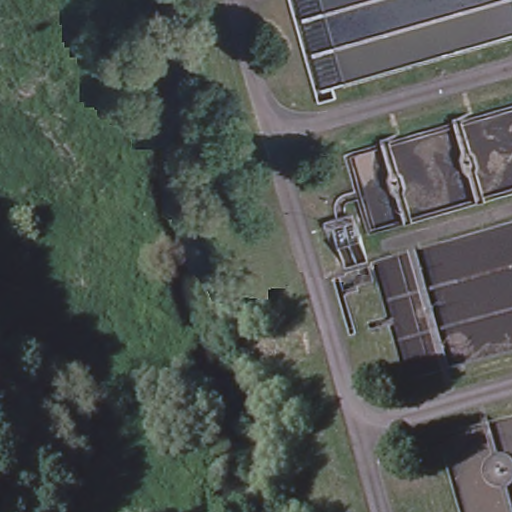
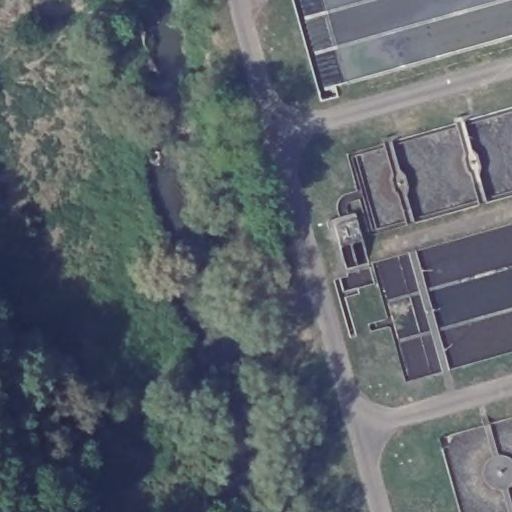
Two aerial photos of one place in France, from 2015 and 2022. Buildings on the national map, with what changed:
[]

